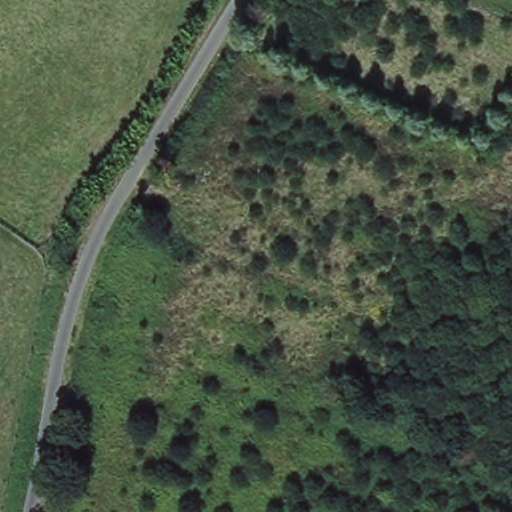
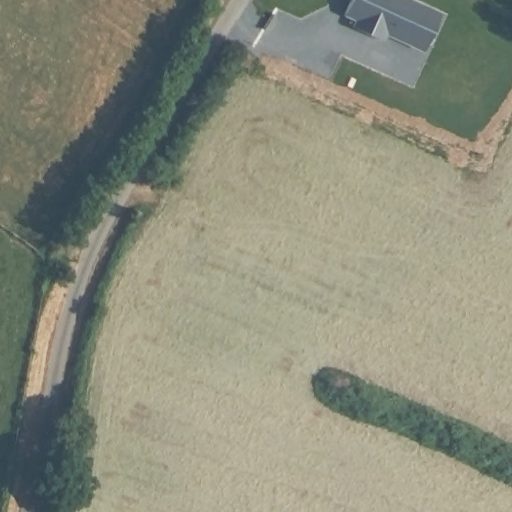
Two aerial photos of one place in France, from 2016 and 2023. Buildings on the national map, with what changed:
new [(445,13),(426,52),(391,34),(389,41),(355,29),(360,19),(345,10),(350,0),(417,0),(445,13)]

